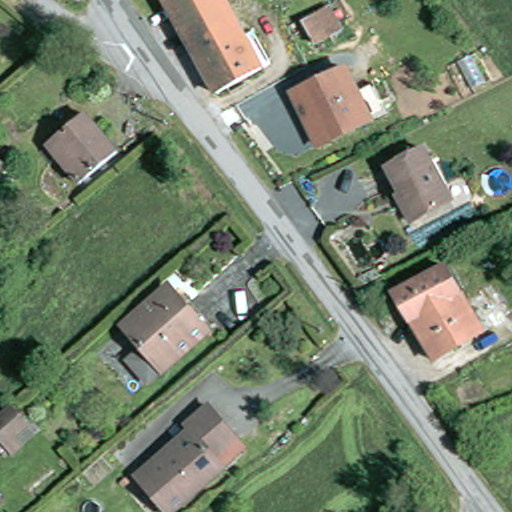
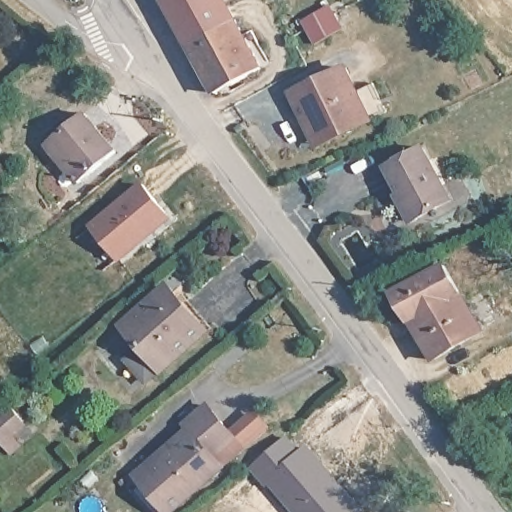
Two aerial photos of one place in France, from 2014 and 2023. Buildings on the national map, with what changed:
unchanged [(167,0),(225,0),(264,71),(219,94),(166,1),(167,0)]
new [(327,6),(342,32),(318,46),(303,19),(327,6)]
unchanged [(297,110),(290,96),(301,90),(343,70),(350,86),(354,94),(372,85),(385,115),(341,137),(327,144),(316,149),(309,135),(297,110)]
unchanged [(76,182),(46,145),(86,114),(116,151),(76,182)]
unchanged [(398,192),(385,166),(422,147),(448,201),(408,221),(398,202),(395,194),(398,192)]
unchanged [(0,173),(6,180),(0,185),(0,173)]
new [(173,220),(120,262),(88,225),(142,180),(173,220)]
unchanged [(436,360),(397,296),(447,266),(485,332),(436,360)]
unchanged [(122,331),(165,293),(178,308),(176,311),(197,336),(200,333),(203,337),(160,374),(145,387),(126,365),(141,352),(122,331)]
unchanged [(255,406),(271,427),(241,450),(220,468),(222,471),(175,512),(161,512),(135,481),(150,467),(173,447),(188,434),(183,428),(205,408),(232,440),(227,433),(255,406)]
unchanged [(0,417),(9,410),(22,426),(25,429),(0,451),(0,417)]
new [(265,483),(250,465),(284,436),(297,451),(306,442),(364,510),(361,512),(294,512),(268,481),(265,483)]

